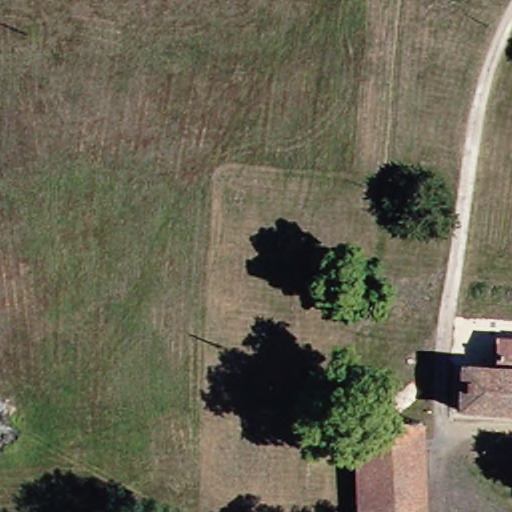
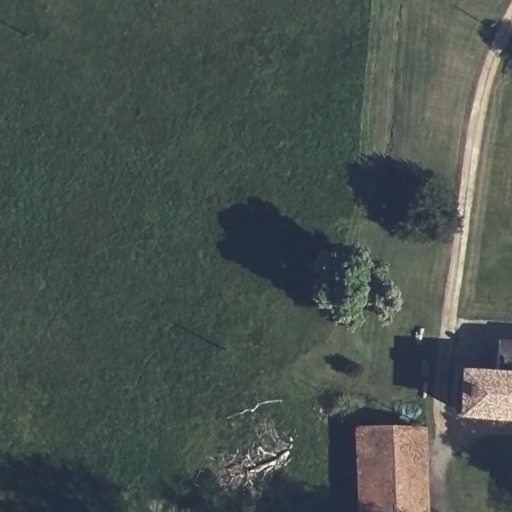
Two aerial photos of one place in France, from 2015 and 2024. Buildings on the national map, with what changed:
unchanged [(512,432),(460,426),(461,391),(491,394),(494,363),(512,365),(512,432)]
unchanged [(351,444),(407,442),(411,512),(354,512),(349,463),(351,444)]

